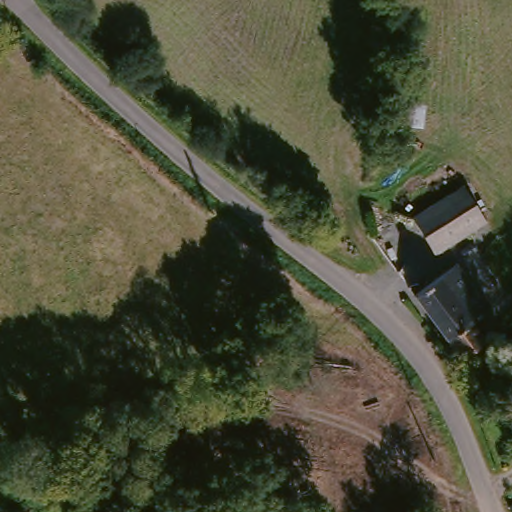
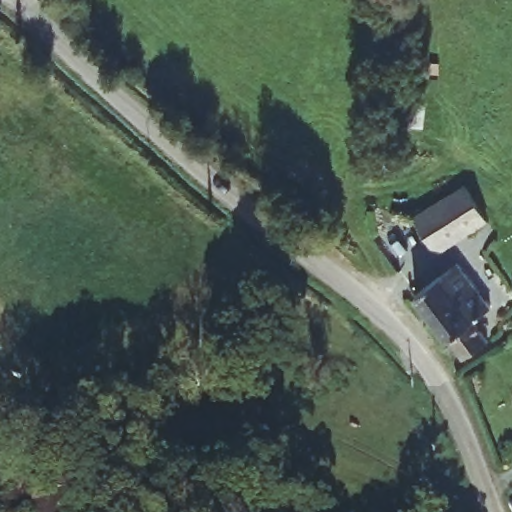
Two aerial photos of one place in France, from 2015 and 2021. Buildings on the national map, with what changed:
unchanged [(466,184),(471,191),(486,221),(479,225),(431,250),(411,213),(453,191),(466,184)]
unchanged [(406,297),(451,262),(490,311),(473,325),(486,341),(459,362),(406,297)]
unchanged [(512,503),(512,512),(508,512),(506,508),(512,503)]

